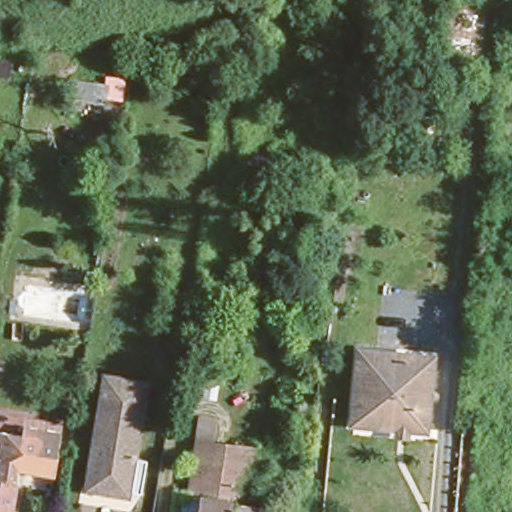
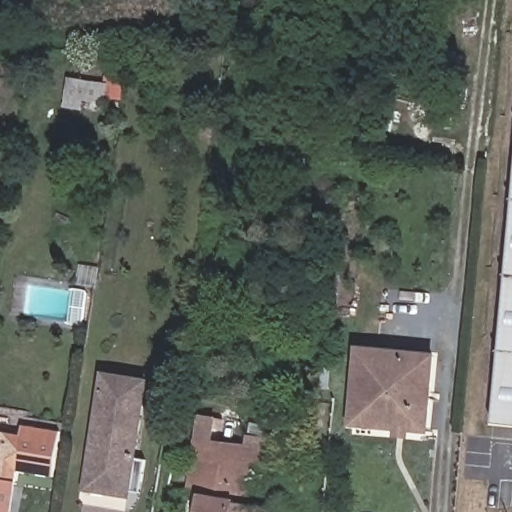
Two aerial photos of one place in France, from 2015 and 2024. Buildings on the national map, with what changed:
unchanged [(0,82),(0,58),(7,59),(4,83),(0,82)]
unchanged [(106,105),(84,102),(84,112),(61,110),(66,75),(110,84),(106,105)]
new [(512,222),(512,425),(495,423),(512,222)]
unchanged [(391,430),(379,430),(349,426),(350,417),(353,376),(355,350),(433,357),(427,433),(407,432),(407,440),(395,438),(396,431),(391,430)]
unchanged [(87,490),(99,393),(101,393),(101,375),(139,379),(137,397),(125,495),(87,490)]
unchanged [(17,460),(12,511),(0,510),(0,436),(20,438),(21,425),(62,430),(58,463),(17,460)]
unchanged [(232,496),(237,450),(191,446),(192,438),(256,446),(250,499),(232,496)]
unchanged [(232,496),(250,499),(292,505),(292,512),(195,512),(197,492),(180,490),(182,476),(187,476),(191,446),(237,450),(232,496)]

